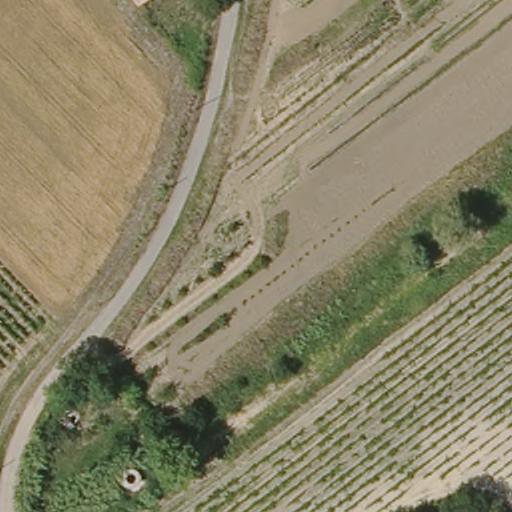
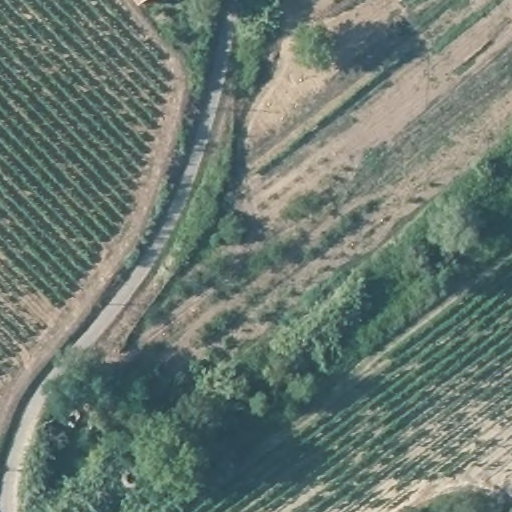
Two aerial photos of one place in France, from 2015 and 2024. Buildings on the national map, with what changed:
unchanged [(140,0),(134,4),(132,0),(140,0)]
unchanged [(143,486),(141,489),(137,491),(133,492),(130,491),(126,489),(124,486),(123,482),(124,478),(126,474),(130,472),(133,471),(137,472),(141,474),(143,478),(144,482),(143,486)]

